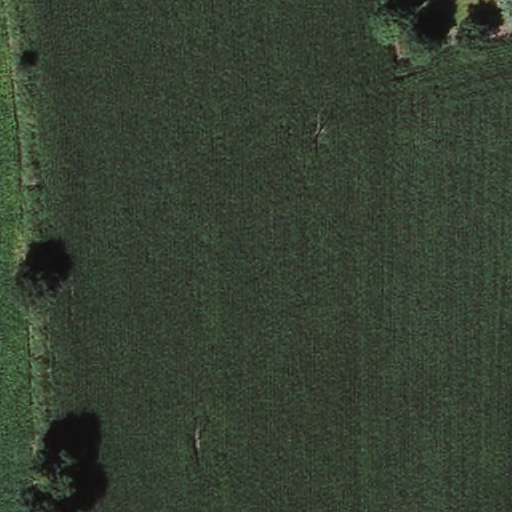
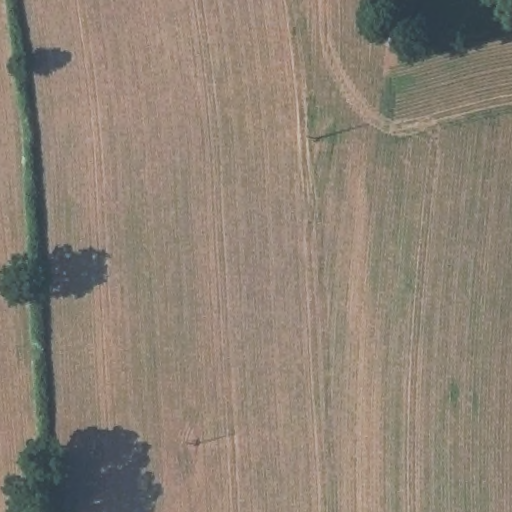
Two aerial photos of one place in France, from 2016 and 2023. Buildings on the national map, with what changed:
[]

